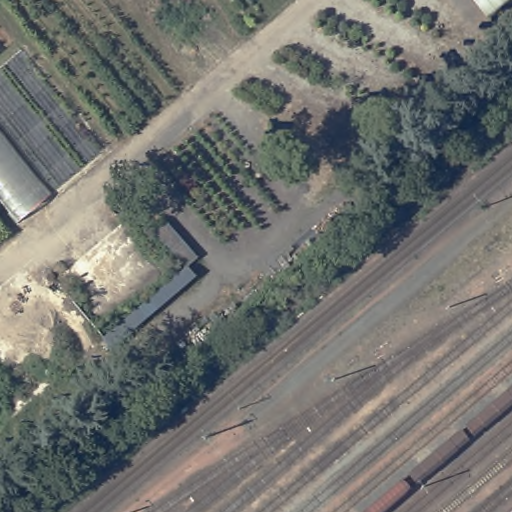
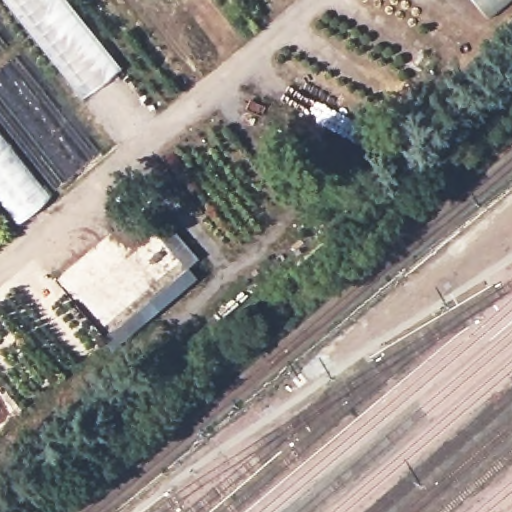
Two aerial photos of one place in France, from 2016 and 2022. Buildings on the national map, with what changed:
new [(81,98),(3,0),(64,0),(117,68),(81,98)]
unchanged [(466,0),(498,0),(478,16),(466,0)]
unchanged [(46,192),(17,217),(0,196),(0,135),(46,192)]

